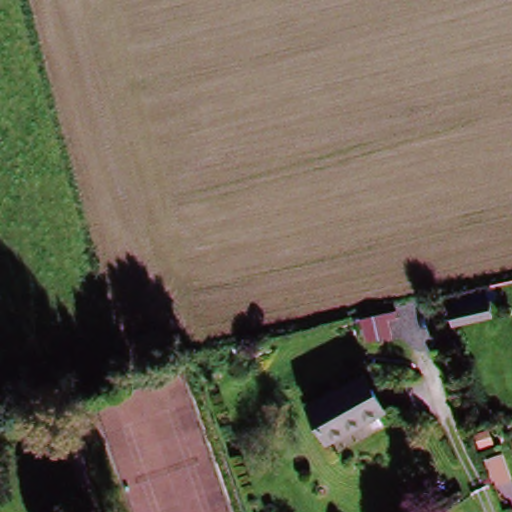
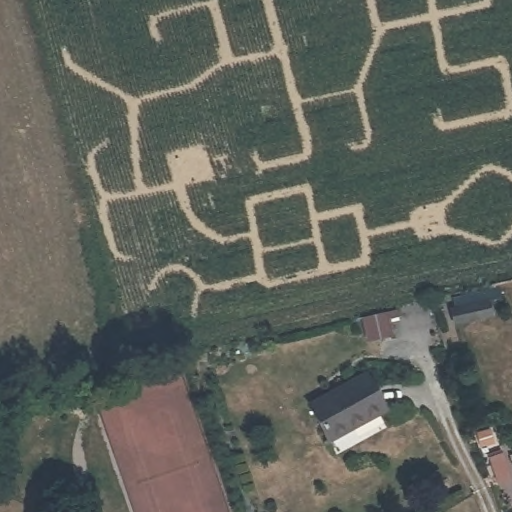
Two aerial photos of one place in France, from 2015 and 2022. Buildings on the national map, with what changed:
unchanged [(450,319),(447,300),(490,292),(493,311),(450,319)]
unchanged [(321,438),(304,398),(366,372),(383,413),(321,438)]

